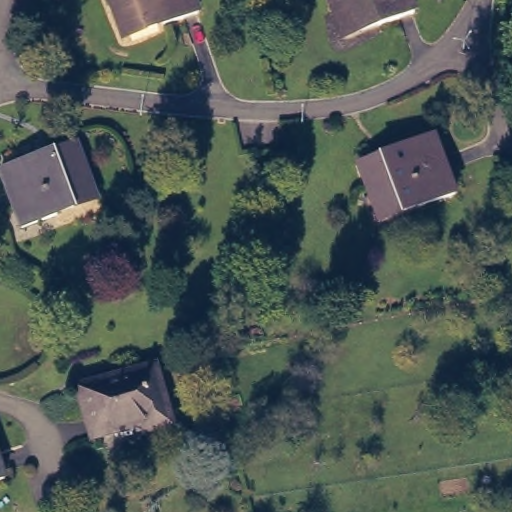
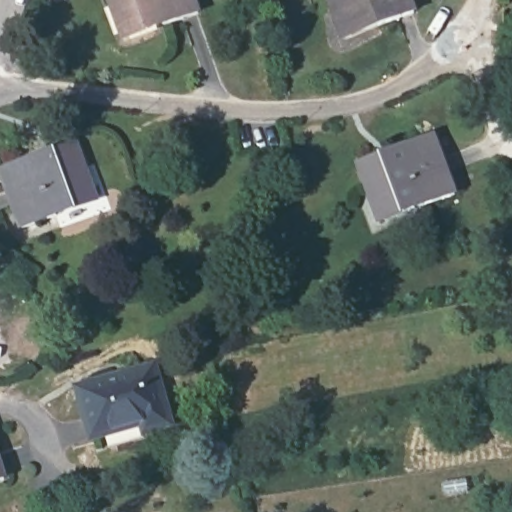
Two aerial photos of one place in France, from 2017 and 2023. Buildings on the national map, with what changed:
unchanged [(120,39),(106,0),(189,0),(194,12),(120,39)]
unchanged [(327,0),(407,0),(409,6),(395,11),(339,32),(327,0)]
unchanged [(384,222),(364,165),(437,137),(458,194),(384,222)]
unchanged [(12,166),(82,141),(102,196),(31,221),(12,166)]
unchanged [(148,436),(147,429),(102,442),(95,416),(87,419),(81,396),(89,394),(154,373),(170,430),(148,436)]
unchanged [(9,475),(0,478),(0,441),(9,475)]

